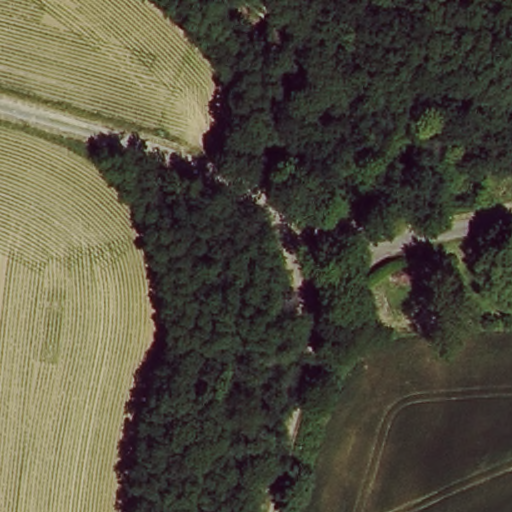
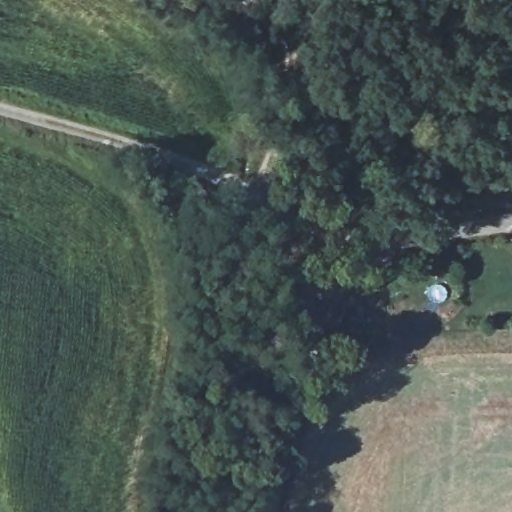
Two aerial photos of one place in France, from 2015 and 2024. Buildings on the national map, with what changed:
unchanged [(423,305),(419,277),(451,271),(457,300),(423,305)]

